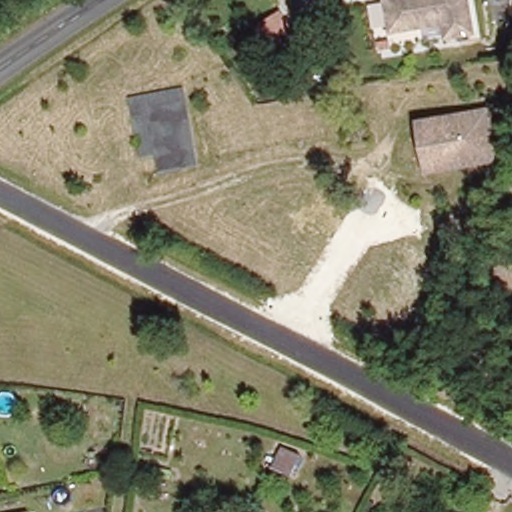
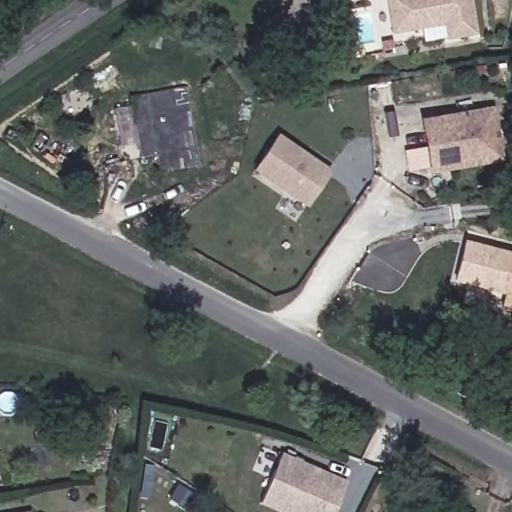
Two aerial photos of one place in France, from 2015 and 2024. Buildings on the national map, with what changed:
unchanged [(441,37),(440,22),(387,32),(381,0),(463,0),(468,32),(441,37)]
unchanged [(277,51),(261,29),(281,15),(283,13),(299,35),(294,39),(277,51)]
unchanged [(187,86),(204,163),(165,171),(158,139),(142,142),(132,97),(187,86)]
unchanged [(418,121),(431,119),(487,109),(493,150),(437,160),(423,161),(418,121)]
new [(331,169),(306,205),(252,169),(277,132),(331,169)]
new [(503,295),(452,281),(464,240),(512,252),(512,312),(500,309),(503,295)]
new [(334,512),(274,512),(257,505),(280,452),(347,481),(334,512)]
unchanged [(38,512),(28,512),(38,510),(38,512)]

